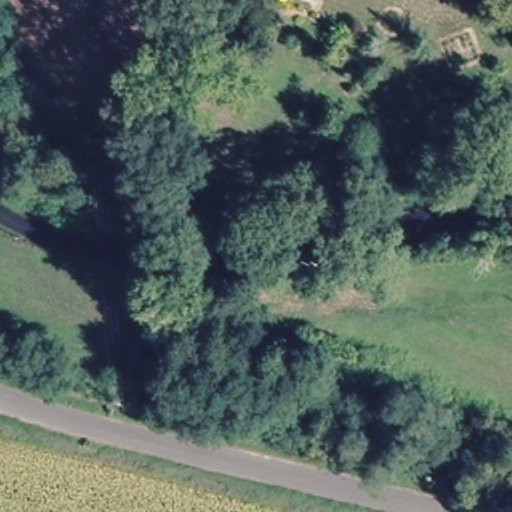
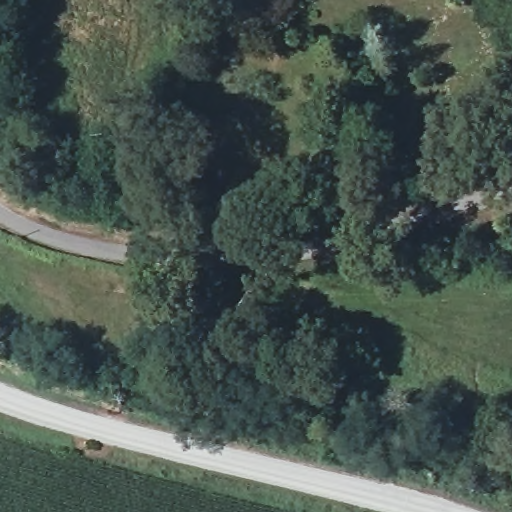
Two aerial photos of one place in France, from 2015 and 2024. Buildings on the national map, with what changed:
[]

